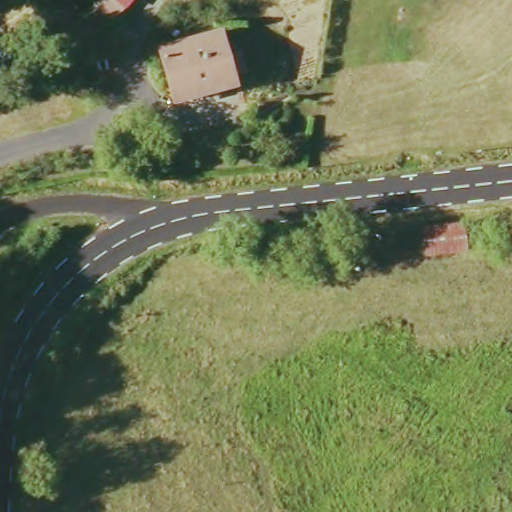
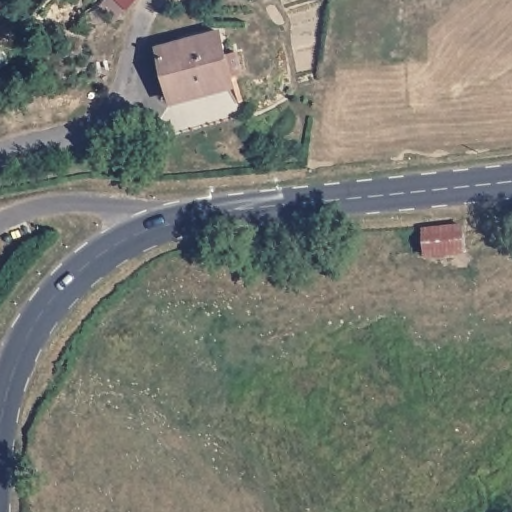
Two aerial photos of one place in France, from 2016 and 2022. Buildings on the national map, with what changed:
unchanged [(97,8),(104,0),(129,0),(109,21),(97,8)]
unchanged [(243,79),(170,99),(154,45),(217,27),(228,63),(239,59),(243,79)]
unchanged [(464,225),(467,253),(426,258),(423,230),(464,225)]

